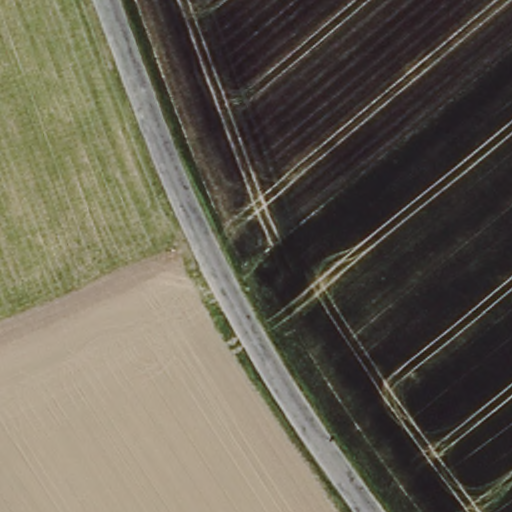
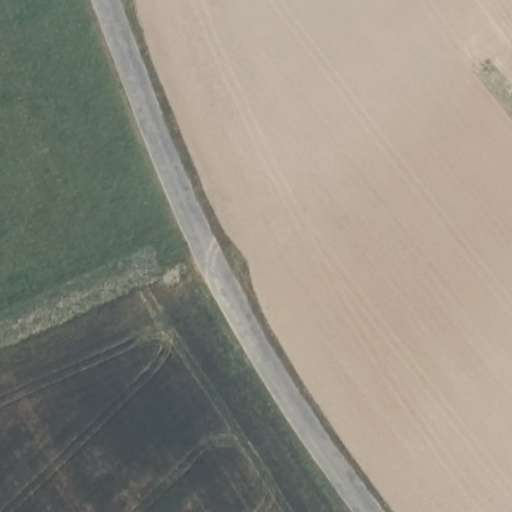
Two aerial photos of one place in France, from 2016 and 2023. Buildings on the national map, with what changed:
[]

